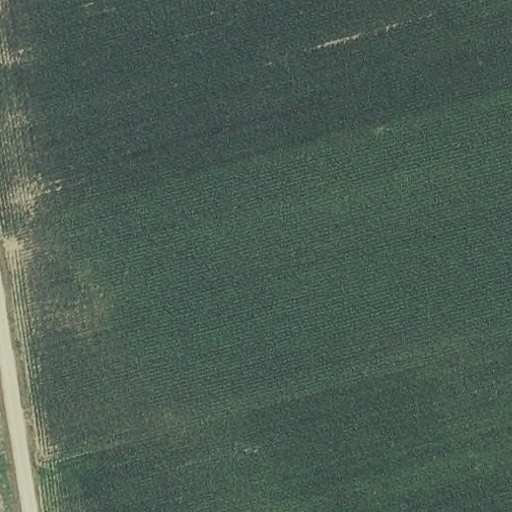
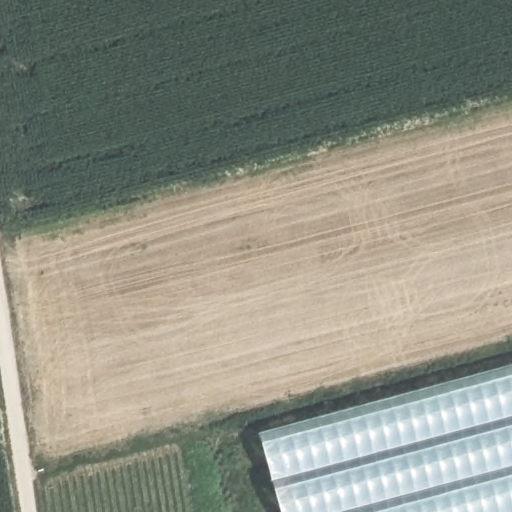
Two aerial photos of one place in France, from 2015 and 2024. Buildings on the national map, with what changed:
new [(375,452),(325,467),(321,468),(270,480),(257,432),(512,363),(512,415),(375,452)]
new [(322,472),(326,471),(512,421),(512,512),(279,512),(270,480),(321,468),(322,472)]

